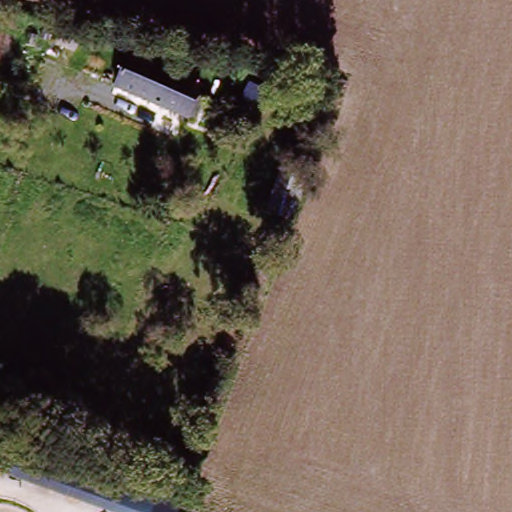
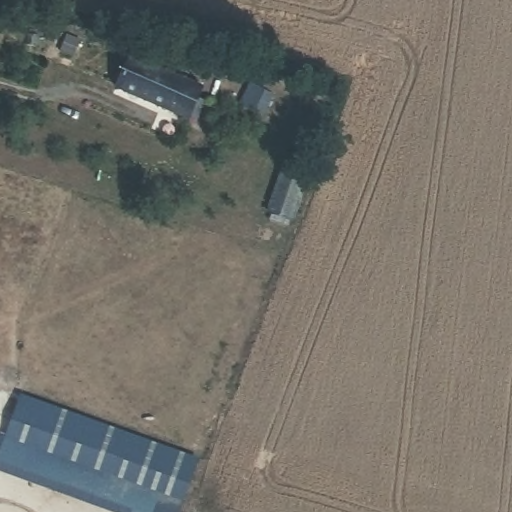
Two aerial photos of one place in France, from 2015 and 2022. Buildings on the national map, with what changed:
unchanged [(136,52),(199,104),(183,126),(119,76),(136,52)]
unchanged [(284,216),(262,207),(278,166),(300,174),(284,216)]
new [(21,394),(199,460),(180,512),(110,512),(0,472),(0,436),(5,437),(21,394)]

